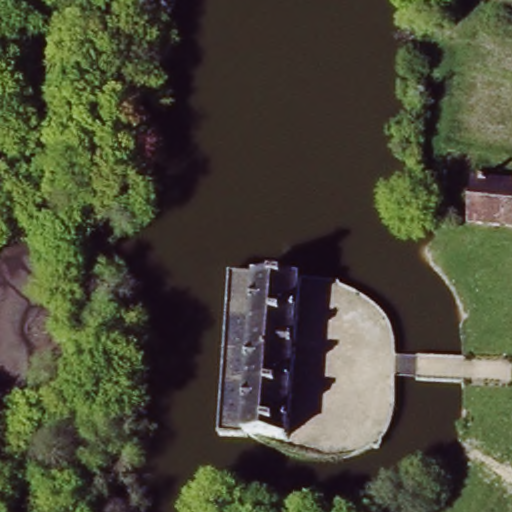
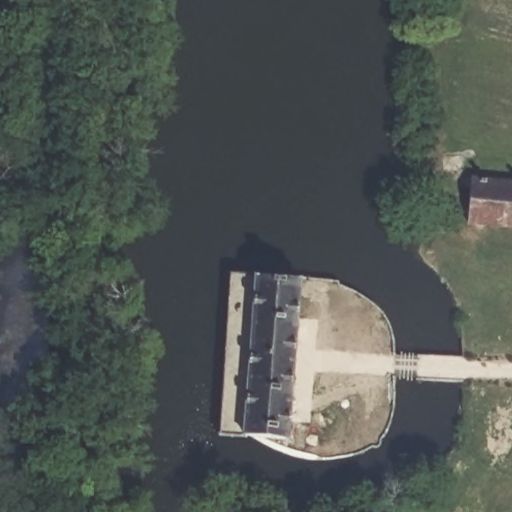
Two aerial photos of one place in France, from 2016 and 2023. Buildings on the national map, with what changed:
unchanged [(477,234),(479,182),(512,182),(512,234),(477,234)]
unchanged [(292,452),(216,450),(229,280),(304,283),(292,452)]

